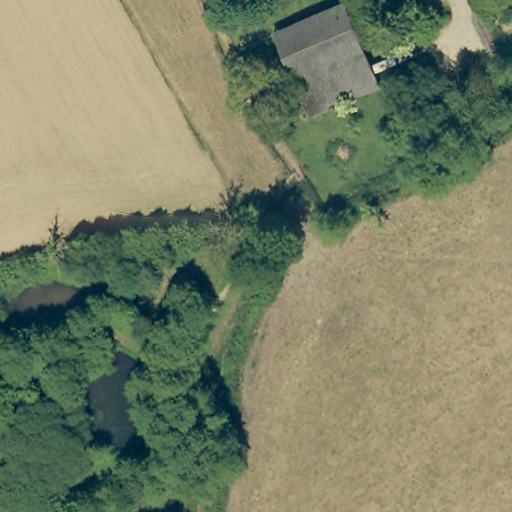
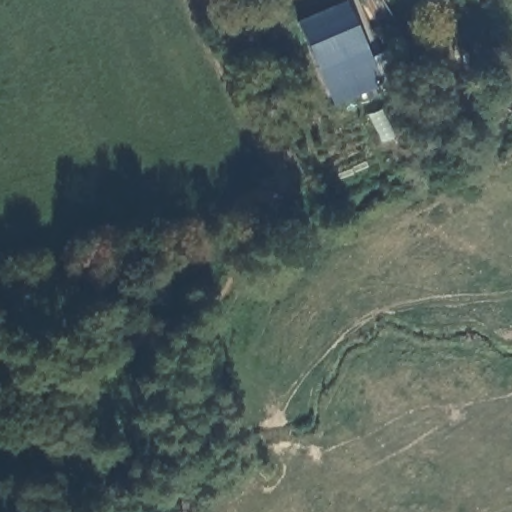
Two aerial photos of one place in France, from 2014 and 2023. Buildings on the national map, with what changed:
unchanged [(381,90),(312,119),(278,36),(346,7),(381,90)]

